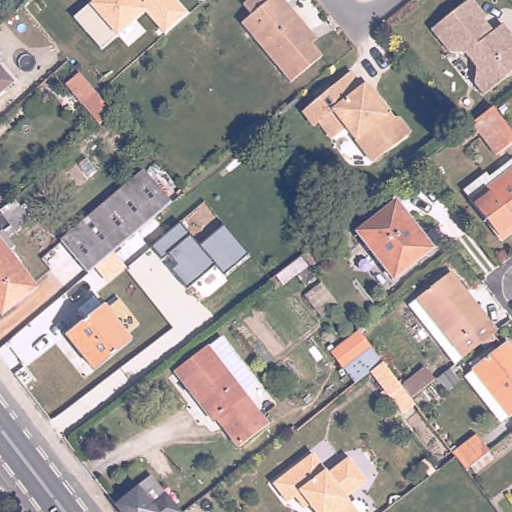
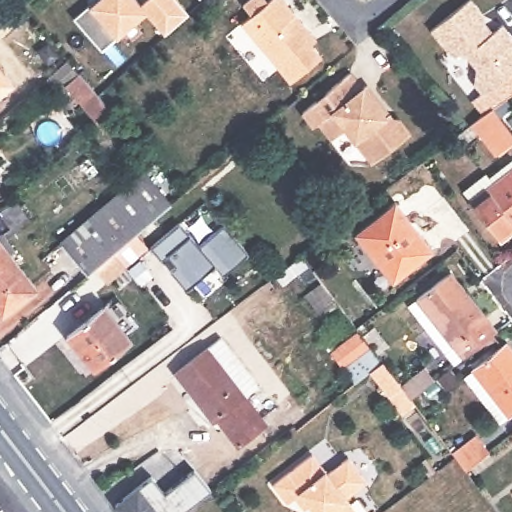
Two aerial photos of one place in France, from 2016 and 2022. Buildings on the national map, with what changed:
unchanged [(92,4),(97,0),(139,0),(142,3),(146,0),(178,0),(187,12),(164,32),(146,10),(116,37),(102,49),(73,18),(92,4)]
unchanged [(254,14),(245,4),(250,0),(271,0),(288,0),(313,31),(307,36),(324,56),(294,82),(244,22),(254,14)]
unchanged [(467,0),(477,0),(485,11),(484,24),(490,31),(504,21),(512,31),(512,70),(485,90),(477,80),(479,64),(468,50),(452,47),(435,25),(467,0)]
unchanged [(11,77),(0,87),(0,63),(11,77)]
unchanged [(355,65),(368,80),(373,77),(398,107),(406,108),(419,122),(382,153),(354,120),(340,132),(326,115),(321,119),(309,104),(355,65)]
unchanged [(64,87),(79,72),(96,92),(112,112),(97,126),(64,87)]
unchanged [(512,135),(512,141),(494,155),(469,124),(490,107),(512,135)]
unchanged [(512,166),(512,225),(494,239),(464,200),(511,165),(512,166)]
unchanged [(59,237),(91,211),(143,166),(170,197),(153,212),(114,245),(111,247),(85,269),(59,237)]
unchanged [(28,215),(5,233),(13,243),(7,247),(34,283),(0,310),(0,205),(11,195),(28,215)]
unchanged [(355,232),(393,202),(430,249),(391,280),(355,232)]
unchanged [(173,270),(180,265),(171,252),(162,258),(151,246),(179,224),(190,236),(200,247),(225,226),(248,252),(224,273),(216,263),(188,287),(173,270)]
unchanged [(299,256),(317,242),(325,255),(308,267),(299,256)]
unchanged [(417,305),(425,299),(459,272),(496,319),(462,347),(455,352),(417,305)]
unchanged [(64,335),(102,305),(130,341),(93,371),(64,335)]
unchanged [(369,372),(355,384),(342,369),(328,351),(356,330),(369,347),(381,362),(399,387),(423,368),(433,380),(409,399),(406,395),(401,388),(389,397),(369,372)]
unchanged [(206,345),(225,335),(242,357),(260,380),(243,392),(264,420),(237,441),(217,413),(212,417),(175,369),(206,345)]
unchanged [(476,365),(509,339),(512,342),(512,412),(503,418),(467,372),(476,365)]
unchanged [(512,434),(512,436),(511,435),(512,434)]
unchanged [(473,475),(467,468),(464,471),(453,457),(451,454),(475,436),(488,452),(485,454),(490,461),(473,475)]
unchanged [(271,484),(311,454),(326,474),(347,458),(362,447),(380,471),(365,482),(344,498),(355,512),(313,512),(308,506),(302,510),(293,497),(286,503),(271,484)]
unchanged [(114,501),(147,475),(151,473),(181,508),(177,512),(123,512),(114,501)]

